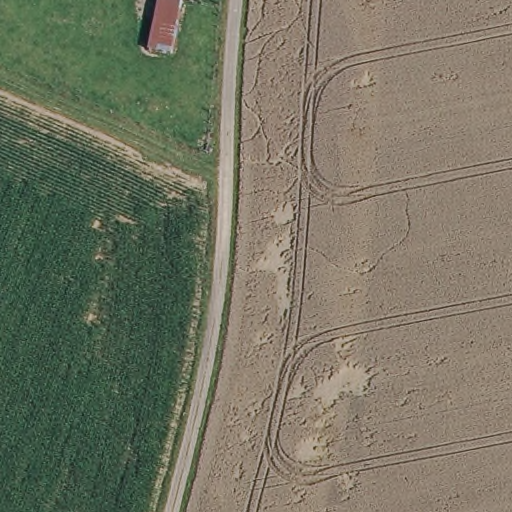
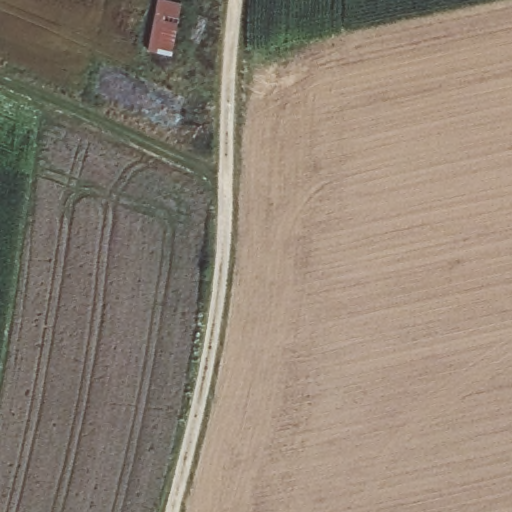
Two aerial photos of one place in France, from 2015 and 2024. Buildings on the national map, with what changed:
unchanged [(183,2),(174,57),(148,51),(157,0),(173,0),(183,2)]

